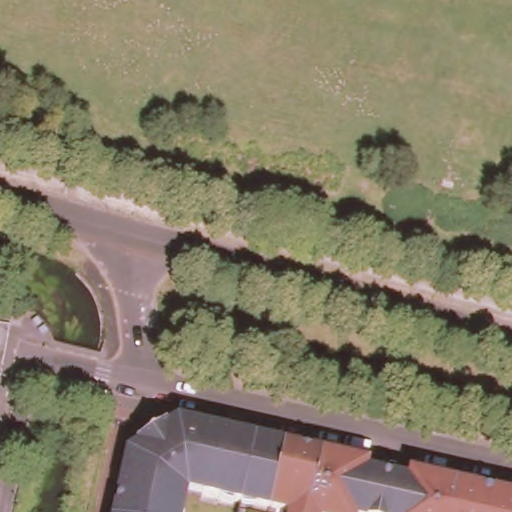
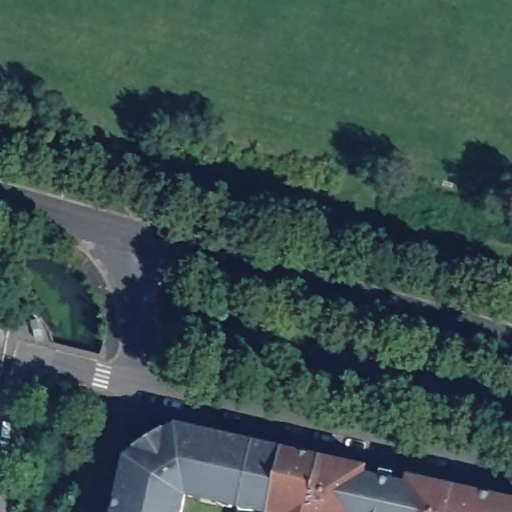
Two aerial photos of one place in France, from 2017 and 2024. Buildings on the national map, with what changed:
unchanged [(127,447),(177,415),(212,423),(260,434),(327,449),(368,458),(367,466),(357,512),(238,512),(240,498),(187,486),(182,512),(113,512),(127,447)]
unchanged [(408,475),(400,512),(357,512),(367,466),(408,475)]
unchanged [(512,491),(512,512),(400,512),(408,475),(410,467),(512,491)]

